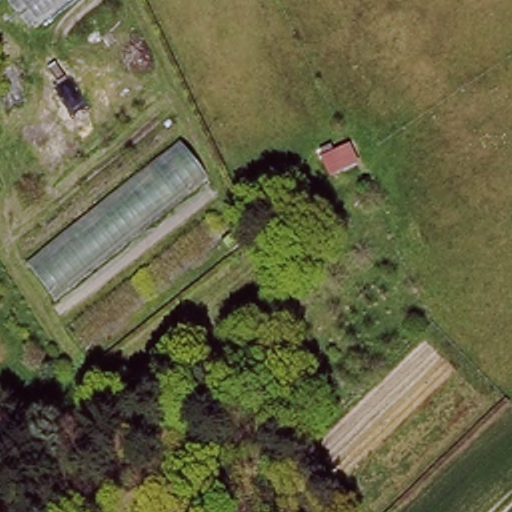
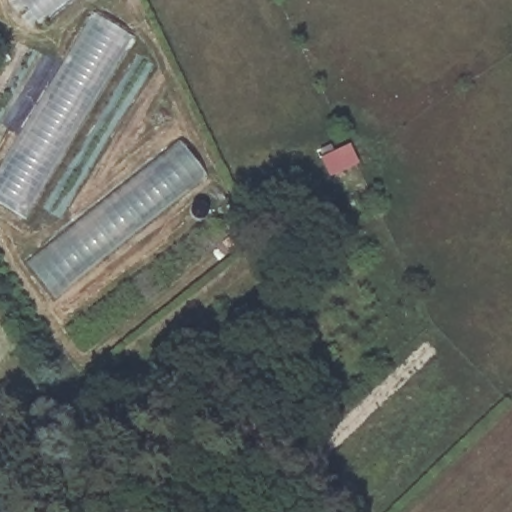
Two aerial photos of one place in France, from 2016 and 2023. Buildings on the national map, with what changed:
unchanged [(65,0),(35,25),(14,0),(65,0)]
new [(0,206),(0,167),(92,13),(133,36),(22,219),(0,206)]
unchanged [(23,263),(179,141),(206,173),(50,297),(23,263)]

